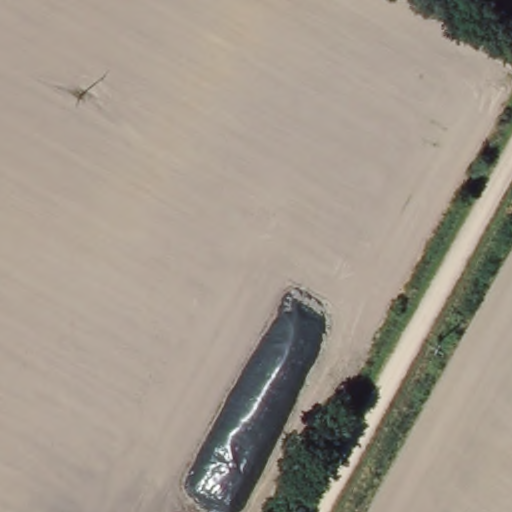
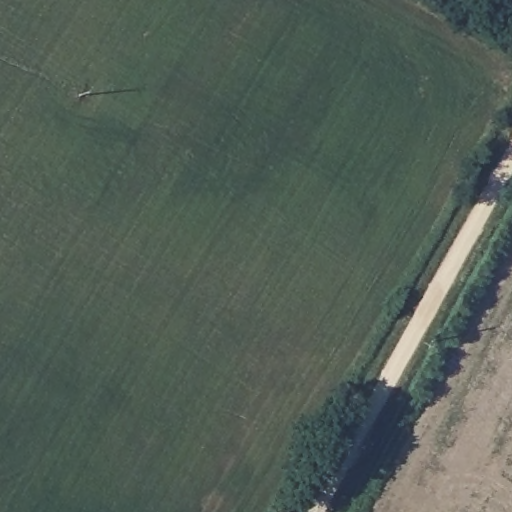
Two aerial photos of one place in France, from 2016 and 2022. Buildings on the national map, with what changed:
[]

